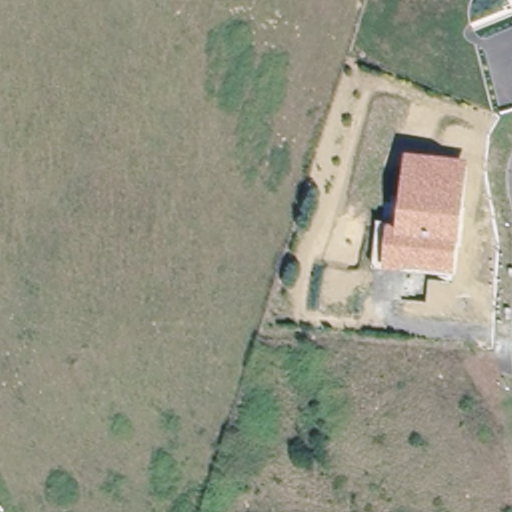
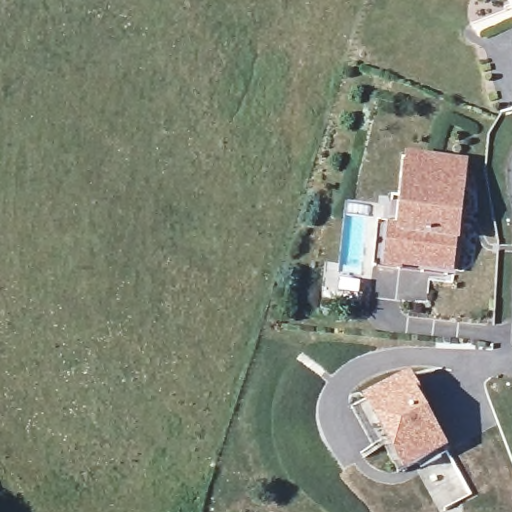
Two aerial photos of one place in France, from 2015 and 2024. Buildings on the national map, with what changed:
unchanged [(376,225),(389,227),(391,200),(397,200),(400,162),(408,163),(463,169),(455,242),(452,242),(450,272),(399,267),(374,266),(376,225)]
new [(407,477),(385,441),(377,446),(356,407),(364,402),(413,376),(452,452),(407,477)]

